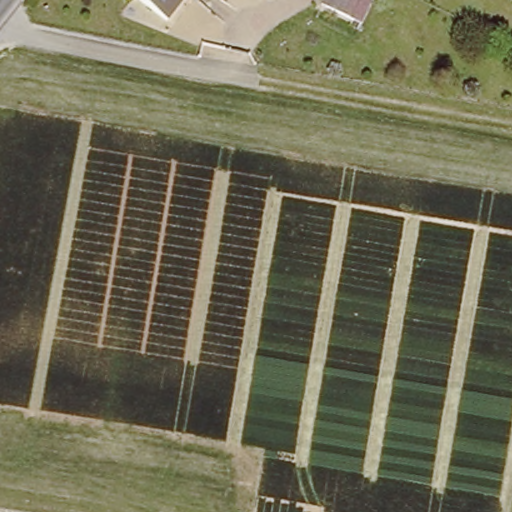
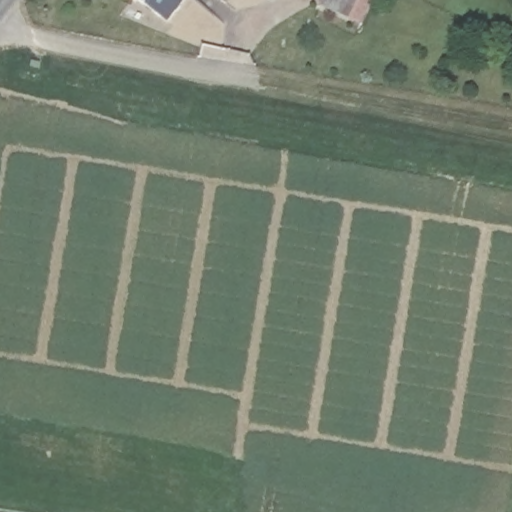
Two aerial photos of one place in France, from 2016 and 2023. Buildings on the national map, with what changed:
unchanged [(165,19),(143,0),(181,0),(165,19)]
unchanged [(366,27),(355,22),(327,9),(331,0),(364,0),(363,3),(374,9),(366,27)]

